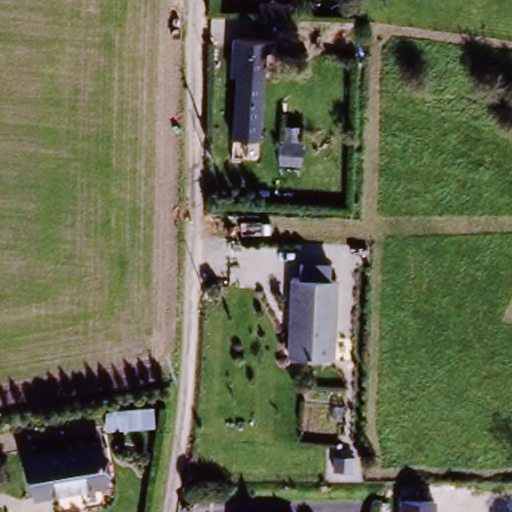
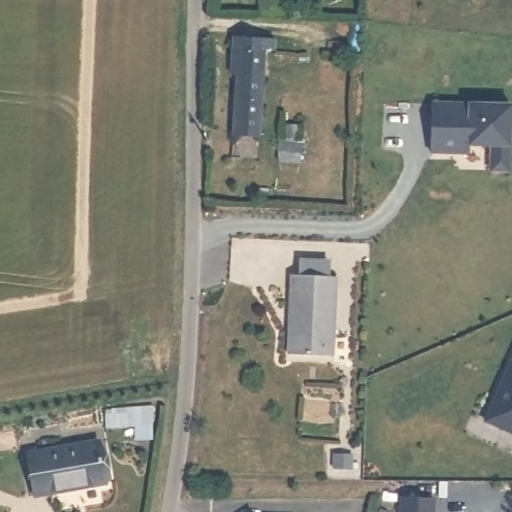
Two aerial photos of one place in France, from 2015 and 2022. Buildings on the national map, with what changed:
unchanged [(288,21),(257,19),(257,4),(288,5),(288,21)]
unchanged [(245,56),(268,57),(264,140),(241,139),(245,56)]
new [(451,155),(427,154),(428,105),(507,106),(505,172),(476,172),(477,147),(464,147),(464,155),(451,155)]
unchanged [(295,276),(339,279),(333,357),(290,355),(291,332),(297,332),(298,313),(293,313),(295,276)]
new [(512,362),(512,437),(486,426),(512,362)]
unchanged [(98,451),(103,492),(32,505),(27,462),(98,451)]
unchanged [(435,512),(400,512),(400,498),(435,500),(435,512)]

